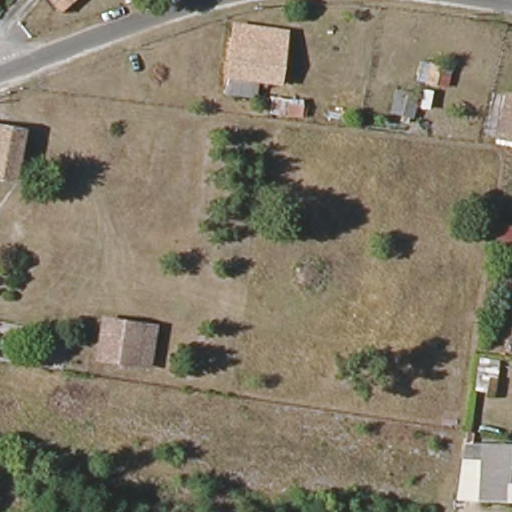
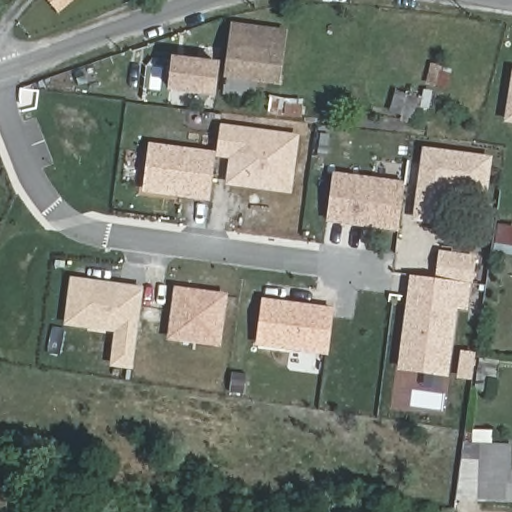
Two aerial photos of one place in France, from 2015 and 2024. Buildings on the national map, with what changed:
unchanged [(50,0),(76,0),(61,13),(50,0)]
unchanged [(227,85),(230,68),(236,19),(286,25),(280,75),(277,92),(227,85)]
new [(177,60),(222,65),(218,94),(173,89),(177,60)]
unchanged [(442,87),(435,85),(440,67),(447,69),(442,87)]
new [(507,120),(512,87),(512,121),(507,120)]
unchanged [(420,120),(398,115),(403,95),(425,100),(420,120)]
unchanged [(264,97),(305,102),(303,121),(261,115),(264,97)]
new [(225,186),(229,160),(215,157),(216,154),(221,124),(300,135),(292,195),(225,186)]
demolished [(0,179),(0,129),(24,134),(15,182),(0,179)]
new [(141,193),(148,145),(216,154),(209,202),(141,193)]
new [(493,156),(488,194),(449,188),(449,200),(446,200),(444,212),(435,211),(433,224),(412,221),(422,147),(493,156)]
new [(405,181),(398,232),(326,223),(333,171),(405,181)]
unchanged [(501,246),(505,226),(512,228),(512,248),(501,246)]
new [(438,250),(477,255),(473,284),(457,320),(449,378),(396,371),(409,275),(435,279),(438,250)]
new [(113,333),(63,326),(70,277),(143,287),(133,365),(110,361),(113,333)]
new [(174,287),(227,294),(221,348),(166,341),(174,287)]
new [(334,307),(327,356),(255,346),(262,298),(334,307)]
demolished [(139,366),(99,360),(105,320),(145,326),(139,366)]
unchanged [(475,445),(468,444),(469,433),(476,434),(475,445)]
unchanged [(484,484),(511,485),(510,501),(462,499),(469,445),(486,446),(484,484)]
unchanged [(512,447),(512,460),(511,485),(484,484),(486,446),(512,447)]

